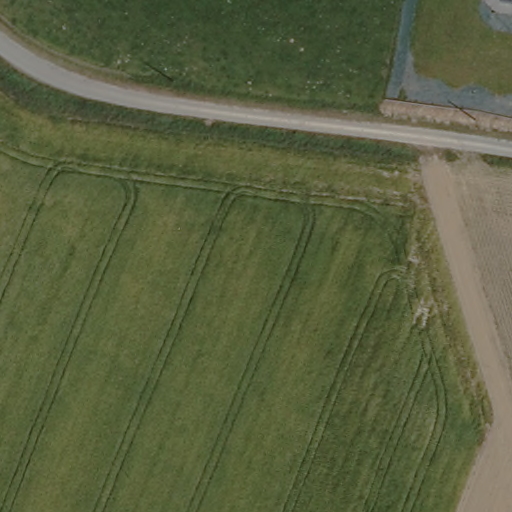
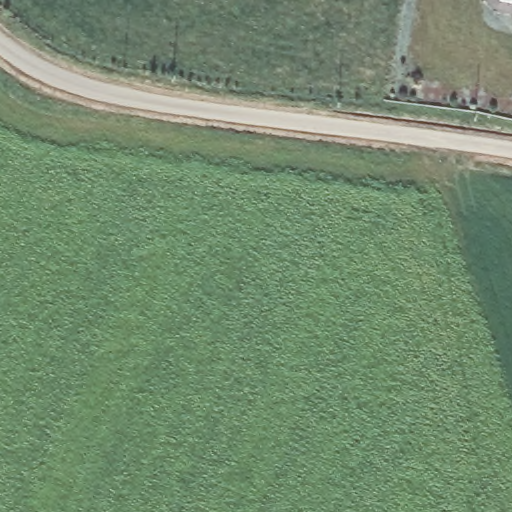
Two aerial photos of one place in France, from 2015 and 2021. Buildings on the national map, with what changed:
unchanged [(498,10),(498,0),(512,0),(512,17),(502,17),(498,10)]

